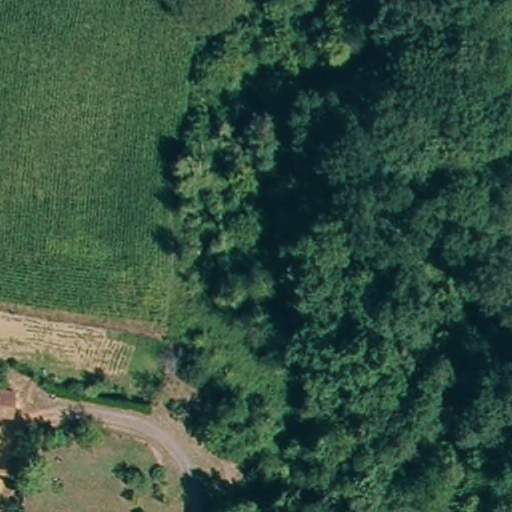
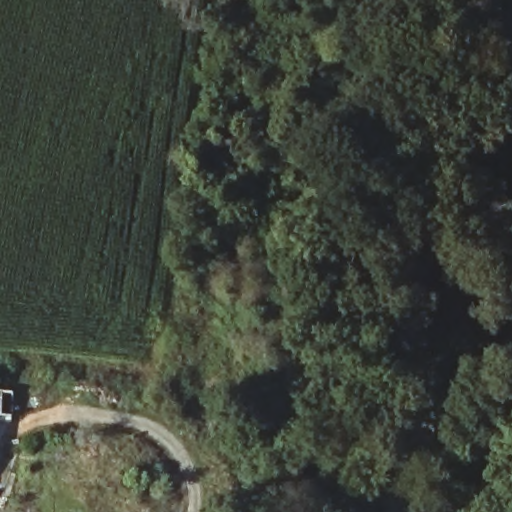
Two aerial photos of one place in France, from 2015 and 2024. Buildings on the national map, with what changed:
unchanged [(14,417),(0,416),(0,392),(17,393),(14,417)]

